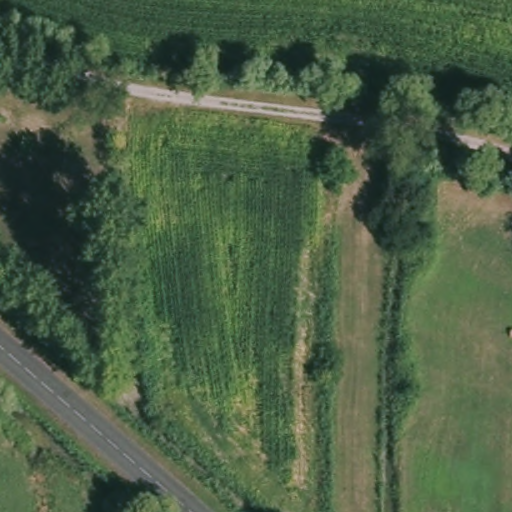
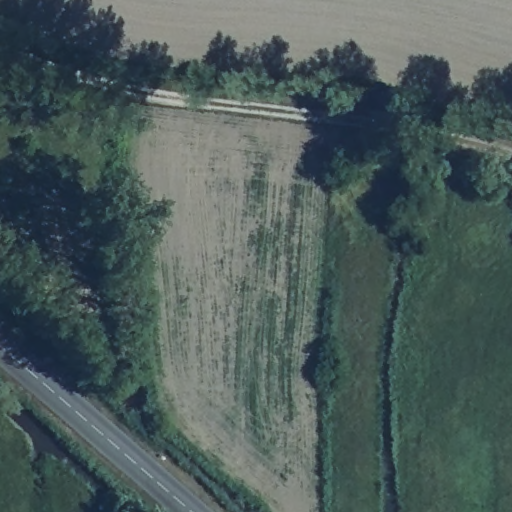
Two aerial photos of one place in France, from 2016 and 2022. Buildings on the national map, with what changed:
unchanged [(495,174),(492,194),(461,190),(465,168),(495,174)]

